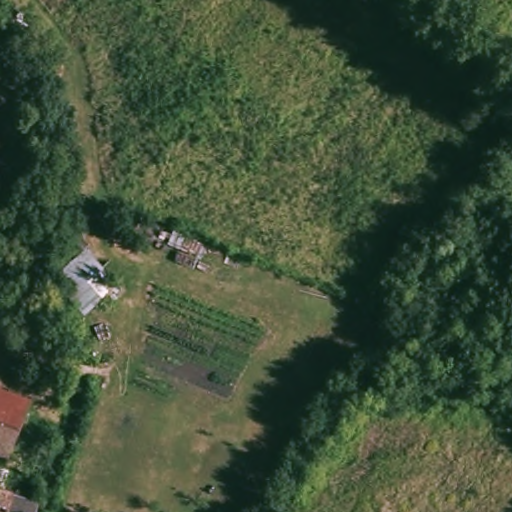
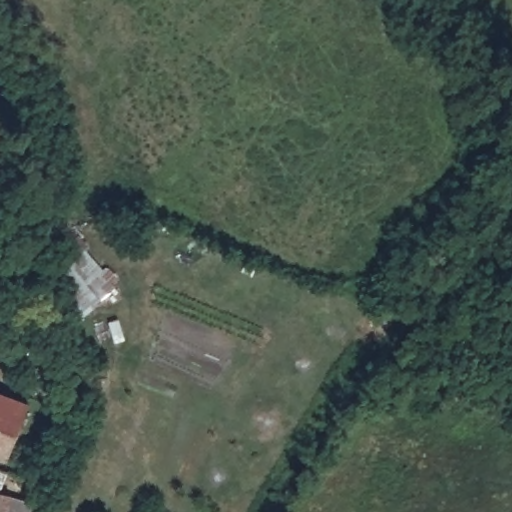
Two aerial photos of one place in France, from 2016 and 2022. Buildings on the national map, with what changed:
unchanged [(2,185),(0,184),(0,153),(7,155),(2,185)]
unchanged [(85,247),(114,284),(98,299),(66,263),(85,247)]
unchanged [(66,263),(98,299),(83,313),(50,277),(66,263)]
unchanged [(23,426),(0,418),(0,387),(31,399),(23,426)]
unchanged [(0,450),(0,418),(23,426),(13,455),(0,450)]
unchanged [(7,471),(0,491),(0,469),(7,471)]
unchanged [(12,495),(7,512),(0,512),(0,492),(12,495)]
unchanged [(37,512),(7,512),(12,495),(39,502),(37,512)]

